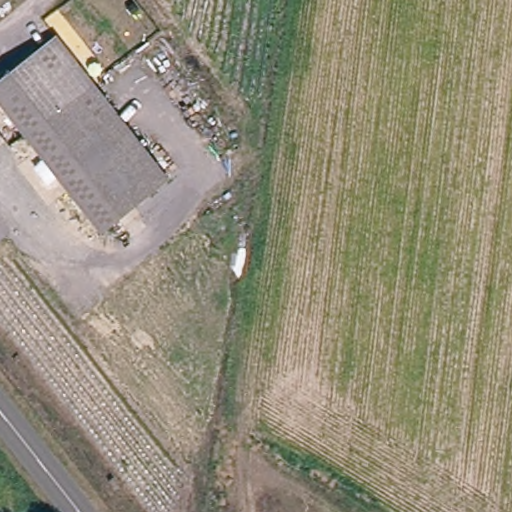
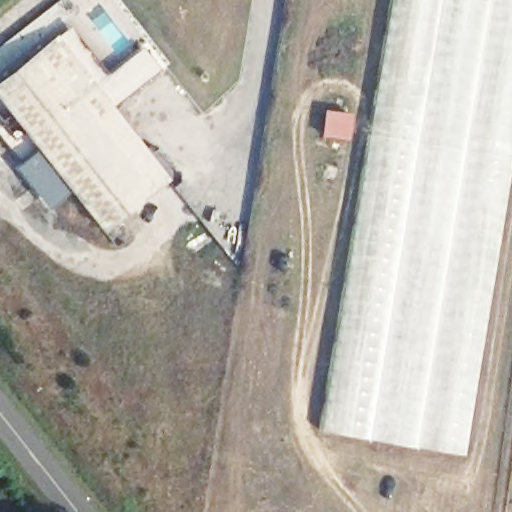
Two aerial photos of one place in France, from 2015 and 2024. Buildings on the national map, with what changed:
new [(320,429),(390,0),(512,0),(512,165),(465,452),(320,429)]
unchanged [(0,100),(0,78),(53,37),(74,64),(52,82),(142,199),(101,231),(0,100)]
unchanged [(52,82),(74,64),(164,182),(142,199),(52,82)]

